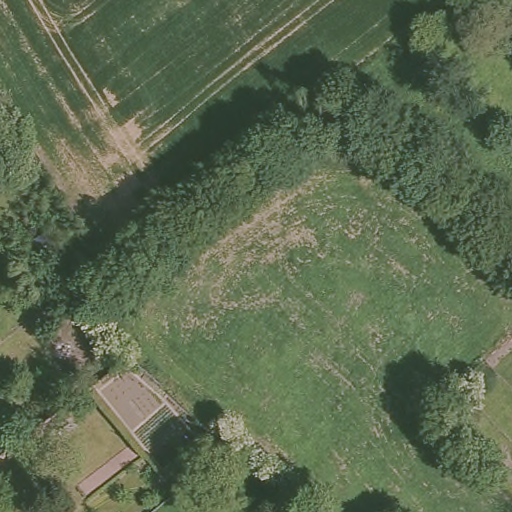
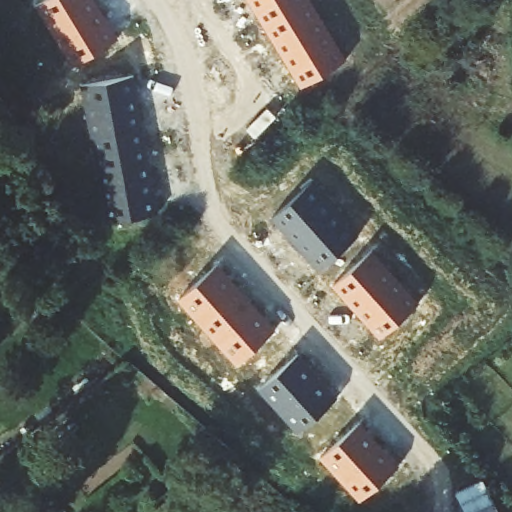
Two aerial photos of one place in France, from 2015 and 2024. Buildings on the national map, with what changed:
new [(118,37),(72,64),(35,5),(44,0),(95,0),(118,37)]
new [(248,0),(311,0),(347,58),(301,86),(248,0)]
new [(133,74),(158,212),(105,223),(80,85),(133,74)]
new [(312,181),(360,233),(318,269),(271,217),(312,181)]
new [(373,247),(420,299),(380,336),(333,284),(373,247)]
new [(275,328),(236,364),(178,299),(217,263),(275,328)]
new [(297,351),(337,396),(297,433),(257,388),(297,351)]
new [(399,464),(360,501),(320,458),(360,422),(399,464)]
new [(499,512),(465,512),(455,492),(483,478),(499,512)]

